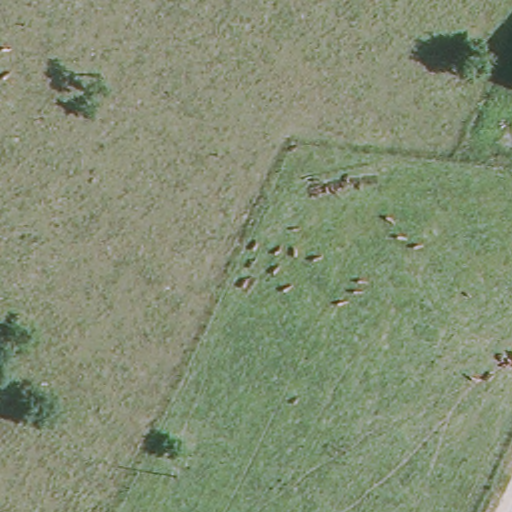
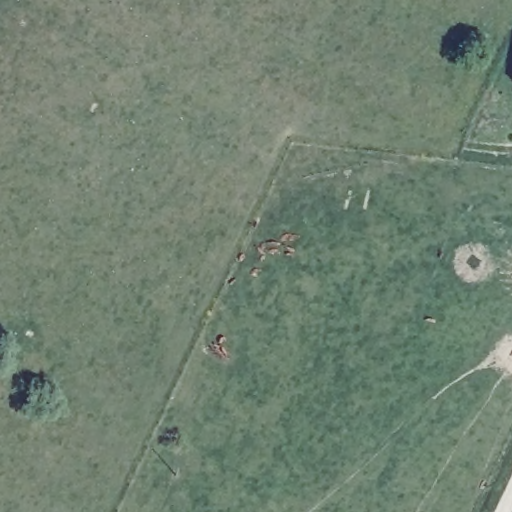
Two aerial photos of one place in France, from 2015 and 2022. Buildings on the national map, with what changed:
unchanged [(509,77),(512,71),(512,79),(509,77)]

